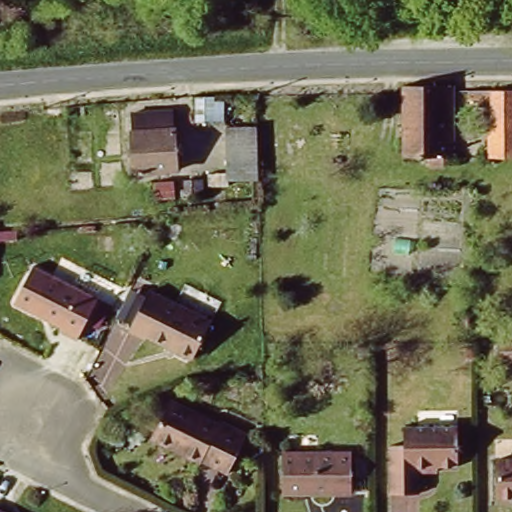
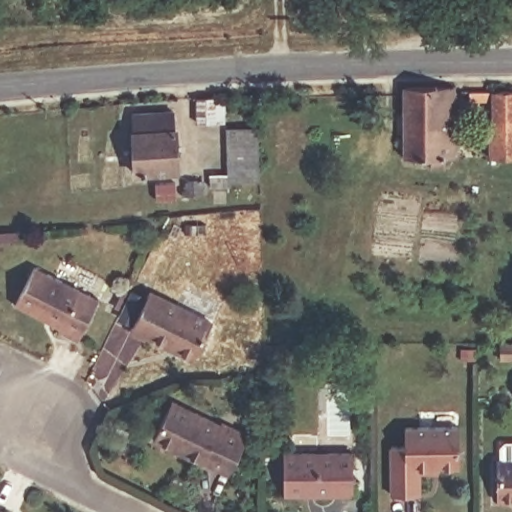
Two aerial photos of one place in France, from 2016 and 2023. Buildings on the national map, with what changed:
unchanged [(453,86),(453,91),(454,157),(404,157),(404,95),(404,86),(453,86)]
unchanged [(488,157),(488,134),(493,134),(493,100),(470,100),(470,91),(493,91),(512,91),(512,157),(488,157)]
unchanged [(215,102),(215,112),(224,112),(224,127),(196,127),(196,102),(215,102)]
unchanged [(168,111),(169,128),(170,128),(172,171),(130,173),(127,131),(128,131),(127,113),(168,111)]
unchanged [(229,184),(228,132),(257,132),(259,184),(229,184)]
unchanged [(199,180),(200,195),(182,196),(181,190),(186,190),(186,180),(199,180)]
unchanged [(175,181),(176,198),(156,200),(155,182),(175,181)]
unchanged [(99,303),(78,345),(60,336),(61,332),(15,309),(34,271),(99,303)]
unchanged [(211,327),(193,364),(146,341),(145,343),(130,335),(149,296),(211,327)]
unchanged [(368,357),(355,357),(355,347),(368,347),(368,357)]
unchanged [(460,348),(475,348),(475,360),(460,360),(460,348)]
unchanged [(220,431),(221,428),(248,442),(230,480),(203,467),(202,469),(153,445),(172,407),(220,431)]
unchanged [(419,472),(420,493),(391,494),(391,446),(405,446),(405,427),(459,427),(459,467),(438,467),(438,472),(419,472)]
unchanged [(283,452),(352,452),(353,494),(283,495),(283,452)]
unchanged [(512,460),(512,500),(496,500),(496,460),(512,460)]

